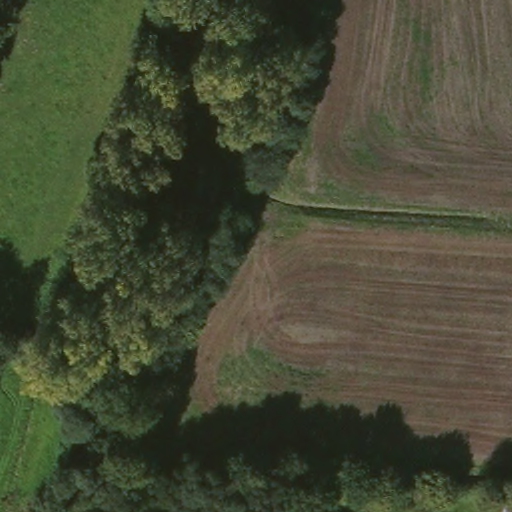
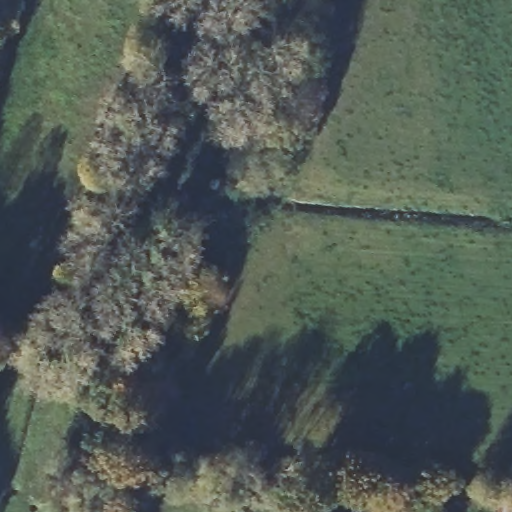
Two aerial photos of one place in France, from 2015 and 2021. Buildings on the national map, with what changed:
unchanged [(512,512),(504,512),(506,499),(512,499),(512,512)]

